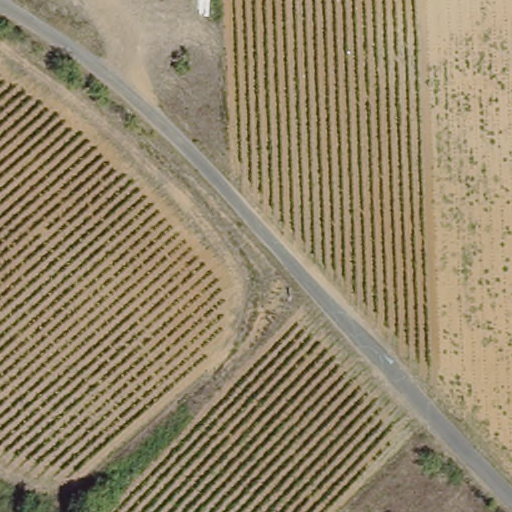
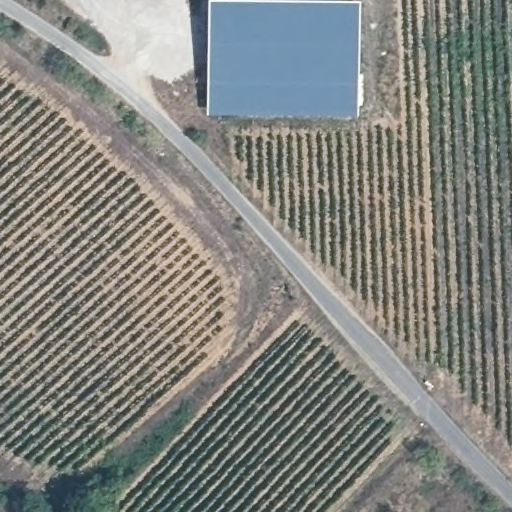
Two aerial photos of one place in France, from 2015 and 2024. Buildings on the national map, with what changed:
new [(201,96),(200,0),(351,0),(351,95),(201,96)]
new [(201,96),(351,95),(351,102),(201,103),(201,96)]

